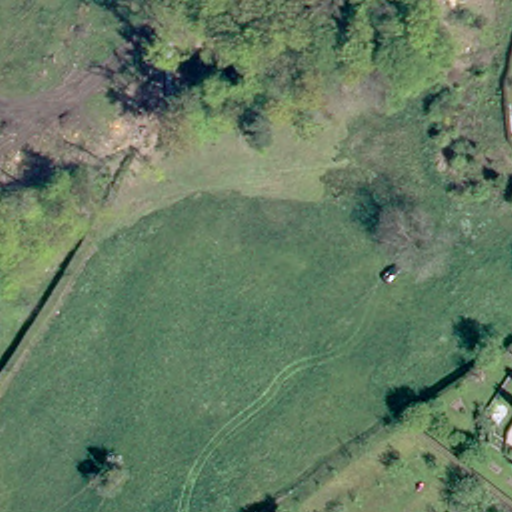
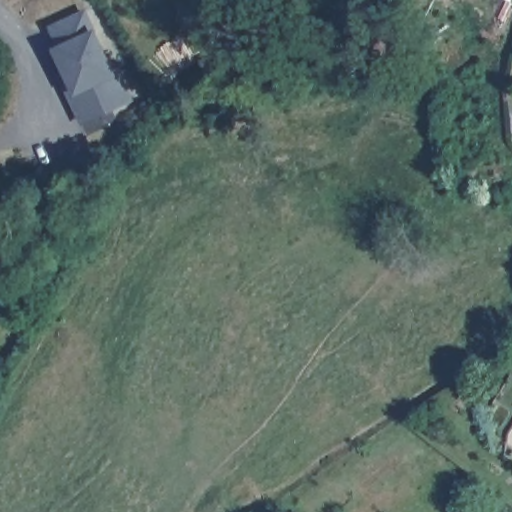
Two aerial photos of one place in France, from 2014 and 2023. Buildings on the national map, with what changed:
new [(95,28),(116,74),(123,74),(134,99),(97,116),(85,89),(74,94),(53,47),(57,45),(47,27),(85,9),(95,28)]

